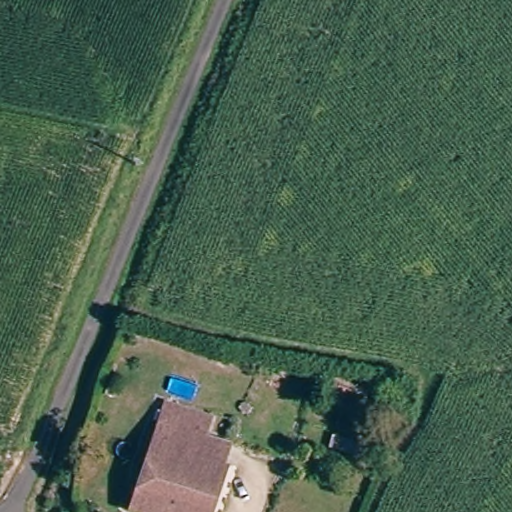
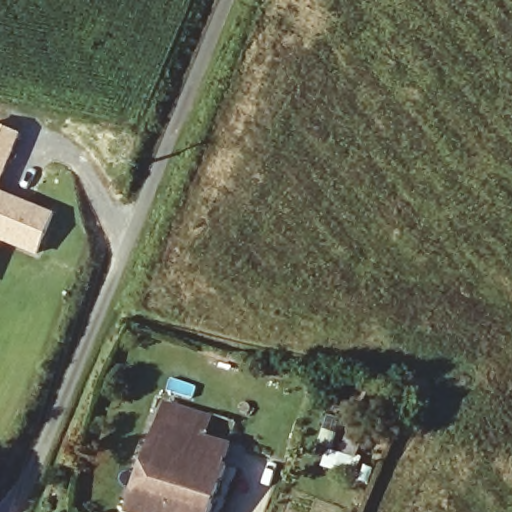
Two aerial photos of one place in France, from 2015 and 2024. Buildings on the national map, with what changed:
new [(0,186),(0,124),(22,133),(0,186)]
new [(37,257),(2,242),(0,246),(0,190),(56,212),(37,257)]
unchanged [(131,509),(152,444),(166,404),(166,403),(209,418),(204,434),(229,443),(222,464),(225,464),(209,512),(138,512),(131,509)]

